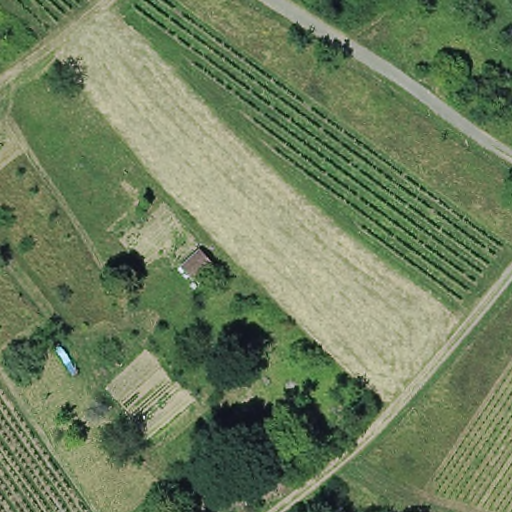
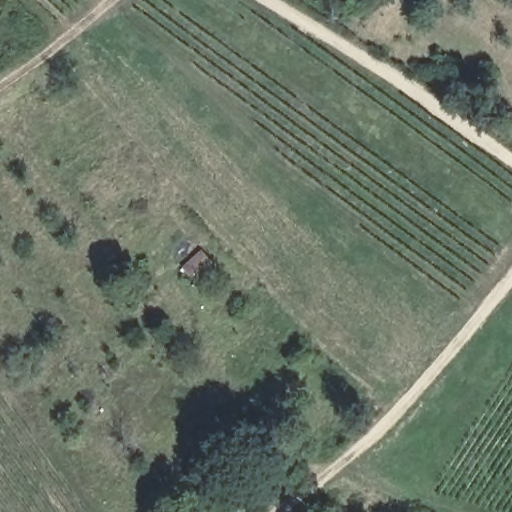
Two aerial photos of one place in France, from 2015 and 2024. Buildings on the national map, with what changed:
unchanged [(193,277),(185,267),(201,252),(210,262),(193,277)]

